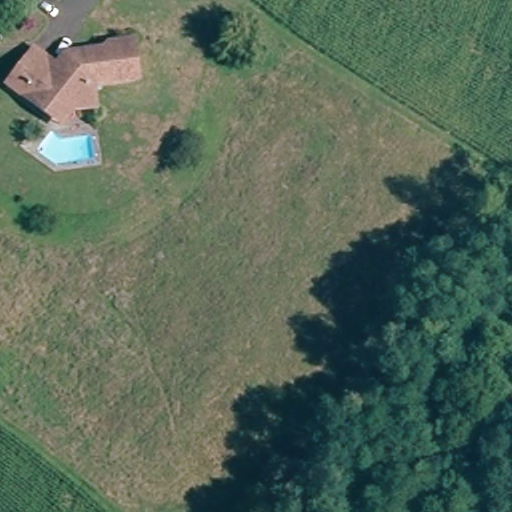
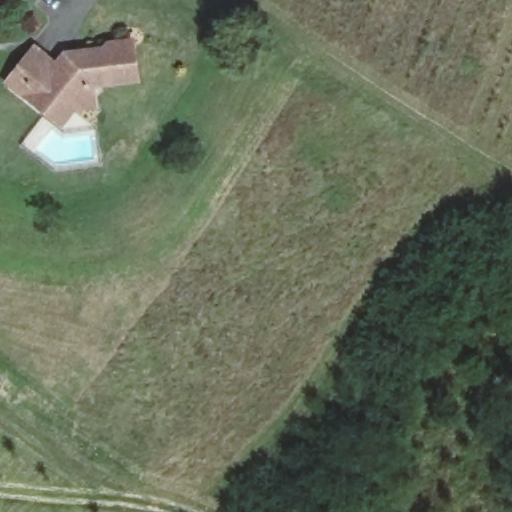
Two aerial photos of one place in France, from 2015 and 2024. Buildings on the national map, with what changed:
unchanged [(4,85),(15,69),(27,49),(42,59),(51,65),(59,52),(71,50),(92,45),(97,49),(102,48),(101,39),(125,34),(132,72),(89,81),(93,102),(71,107),(60,122),(44,112),(4,85)]

